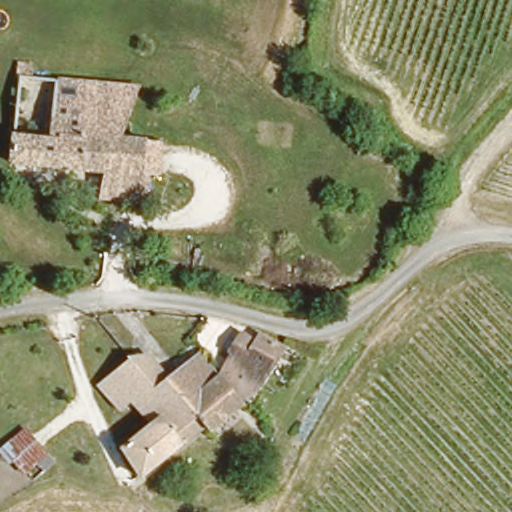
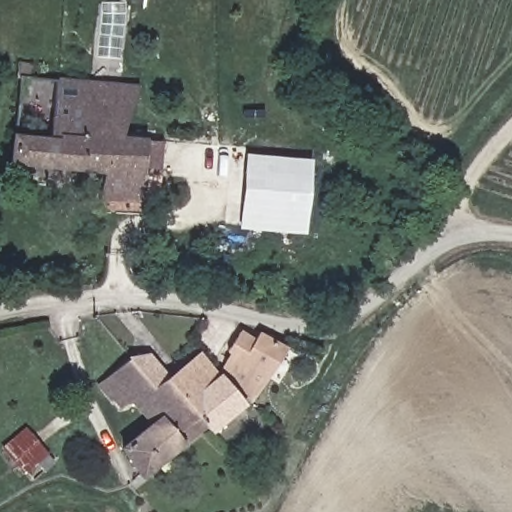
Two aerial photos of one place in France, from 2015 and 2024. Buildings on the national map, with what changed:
unchanged [(48,135),(55,74),(136,83),(120,132),(145,134),(145,168),(155,169),(155,178),(173,180),(169,200),(102,199),(102,174),(9,163),(9,130),(48,135)]
new [(305,233),(239,228),(246,153),(311,158),(305,233)]
unchanged [(236,353),(245,357),(262,332),(283,343),(286,339),(307,349),(295,369),(274,358),(239,397),(218,372),(236,353)]
unchanged [(145,360),(162,376),(190,353),(213,375),(218,372),(239,397),(210,430),(206,424),(205,424),(174,389),(165,379),(152,390),(127,360),(145,360)]
unchanged [(152,390),(165,379),(174,389),(205,424),(143,475),(122,449),(147,426),(127,401),(117,408),(97,382),(127,360),(152,390)]
unchanged [(21,426),(55,458),(44,470),(34,460),(23,472),(0,451),(0,448),(21,426)]

